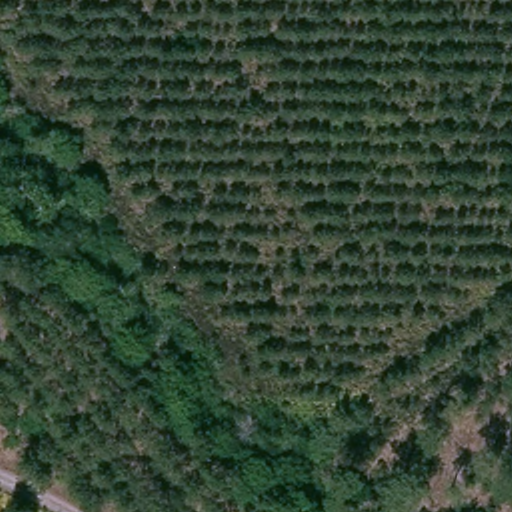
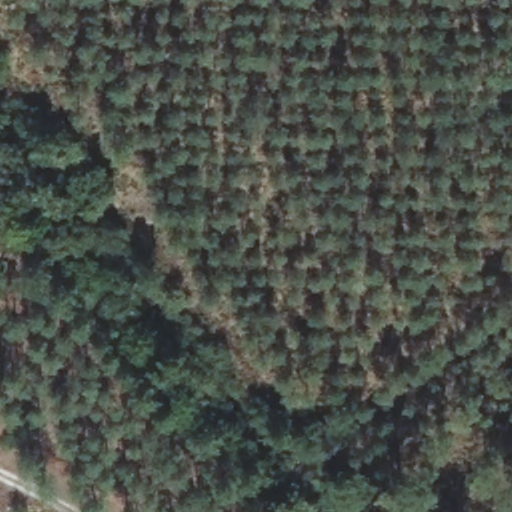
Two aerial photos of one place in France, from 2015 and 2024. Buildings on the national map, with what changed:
[]

